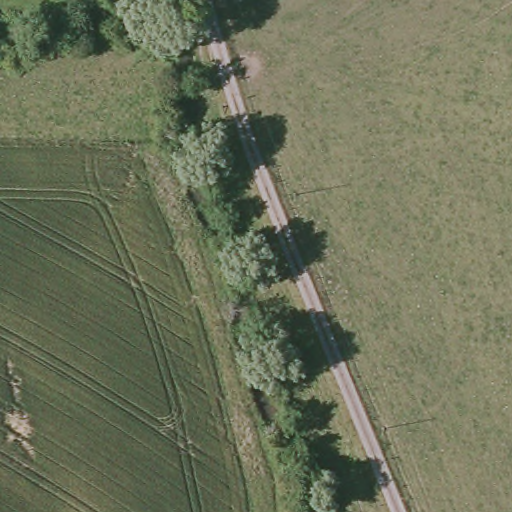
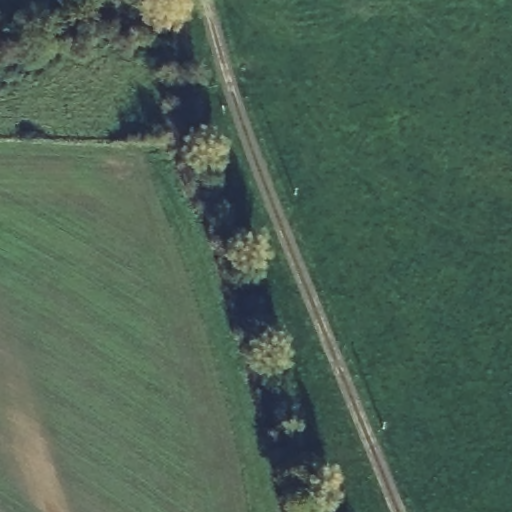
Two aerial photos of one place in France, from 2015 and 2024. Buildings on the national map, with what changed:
[]

